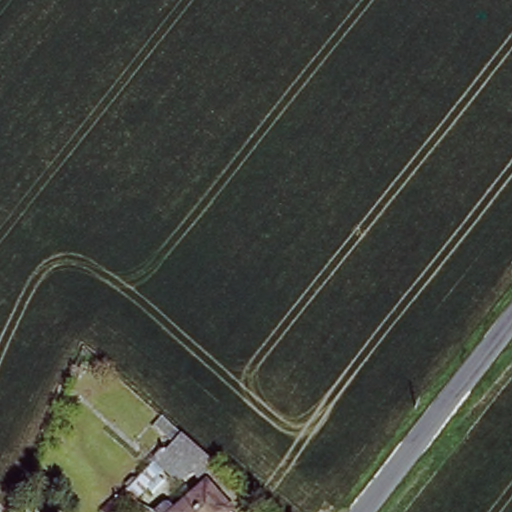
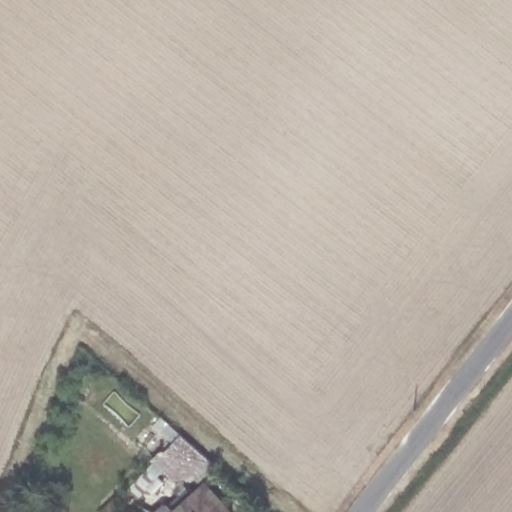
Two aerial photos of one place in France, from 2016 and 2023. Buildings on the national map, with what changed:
unchanged [(214,467),(201,482),(229,512),(167,512),(186,495),(152,465),(179,435),(214,467)]
unchanged [(138,512),(102,512),(123,492),(136,481),(146,491),(133,503),(140,511),(138,512)]

